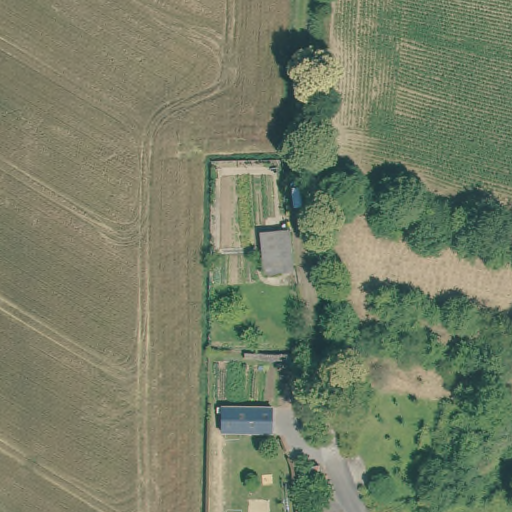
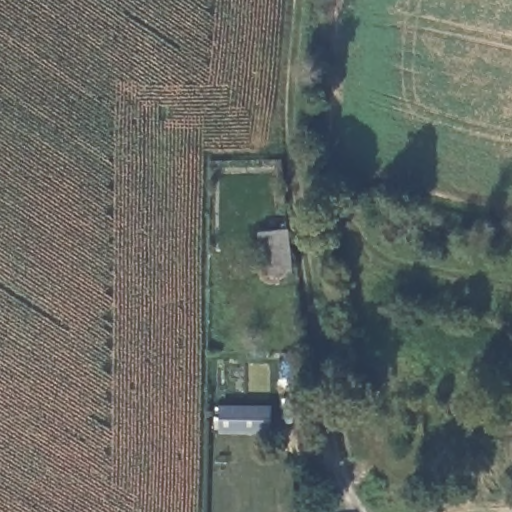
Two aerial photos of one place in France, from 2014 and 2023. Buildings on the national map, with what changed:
unchanged [(288,229),(293,270),(264,272),(260,232),(288,229)]
unchanged [(221,407),(271,408),(270,433),(220,432),(221,407)]
unchanged [(303,476),(302,466),(319,465),(320,474),(303,476)]

